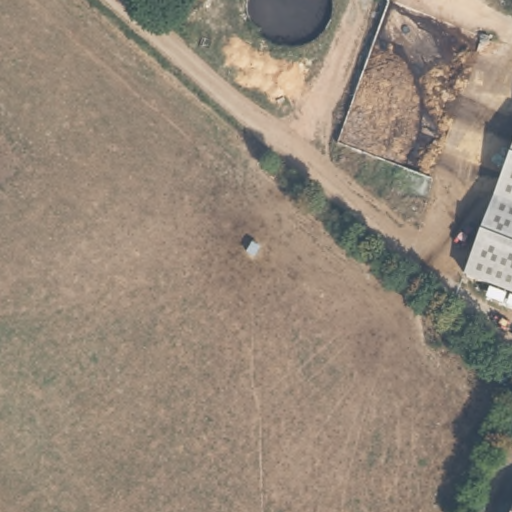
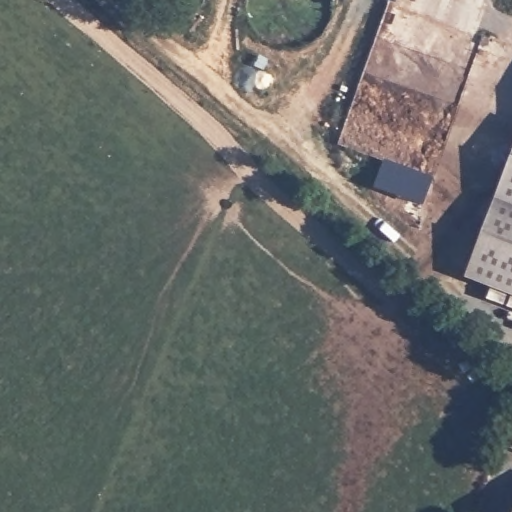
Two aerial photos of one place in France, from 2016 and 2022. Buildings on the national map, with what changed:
new [(423,205),(373,187),(382,159),(433,178),(423,205)]
unchanged [(512,185),(512,297),(474,283),(512,185)]

